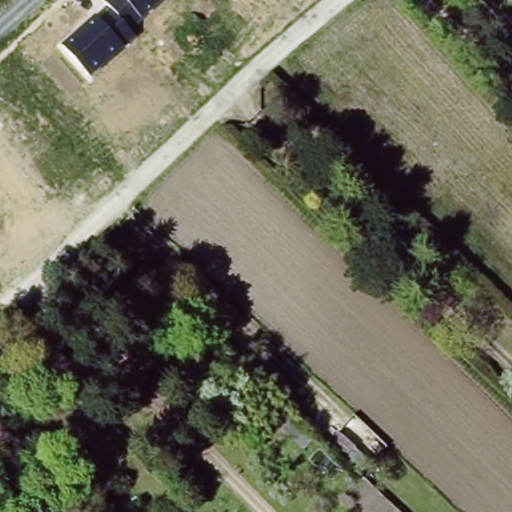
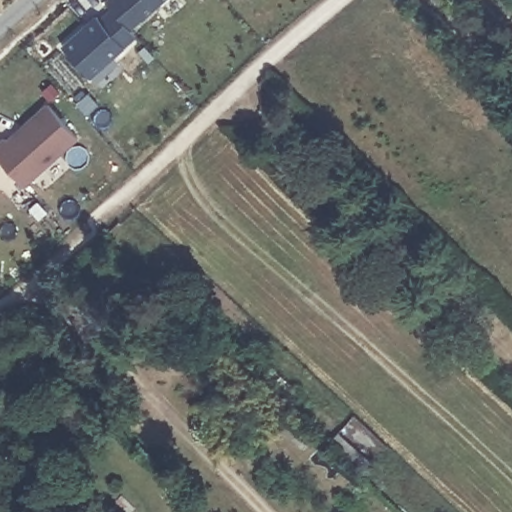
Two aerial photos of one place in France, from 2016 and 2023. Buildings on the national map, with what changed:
unchanged [(97,15),(101,19),(112,10),(105,3),(108,0),(164,0),(132,30),(137,36),(92,78),(62,46),(97,15)]
new [(0,162),(0,143),(4,140),(6,142),(47,105),(77,138),(22,187),(0,162)]
new [(340,429),(372,460),(362,471),(330,440),(340,429)]

